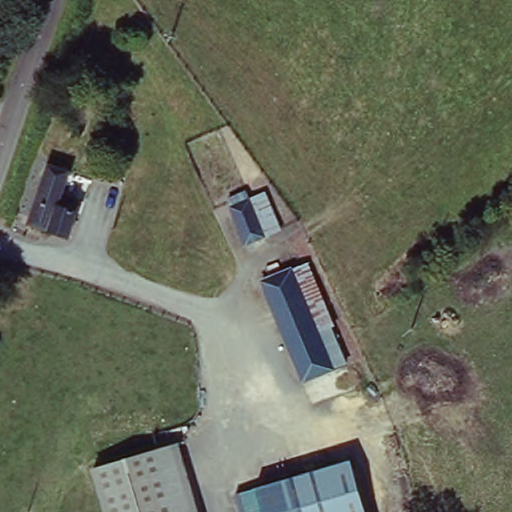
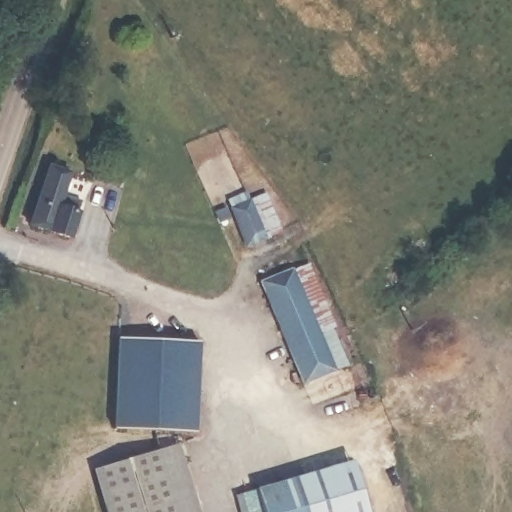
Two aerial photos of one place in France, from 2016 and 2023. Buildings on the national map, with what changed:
unchanged [(60,194),(79,200),(67,236),(27,222),(47,163),(67,170),(60,194)]
unchanged [(229,209),(226,198),(241,192),(245,202),(258,197),(272,234),(260,238),(242,245),(229,209)]
unchanged [(295,264),(314,306),(311,308),(333,365),(322,370),(282,269),(295,264)]
unchanged [(322,370),(295,382),(254,280),(282,269),(322,370)]
new [(195,346),(191,436),(112,433),(117,342),(195,346)]
unchanged [(180,512),(161,449),(181,443),(202,512),(180,512)]
unchanged [(109,512),(96,468),(161,449),(180,512),(109,512)]
unchanged [(259,512),(253,488),(351,462),(364,512),(259,512)]
unchanged [(259,512),(239,512),(235,492),(253,488),(259,512)]

